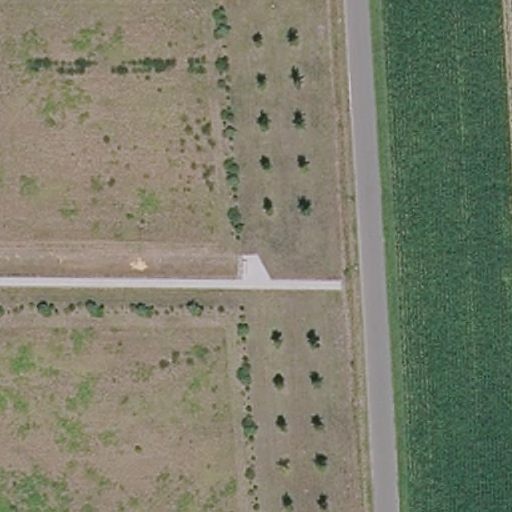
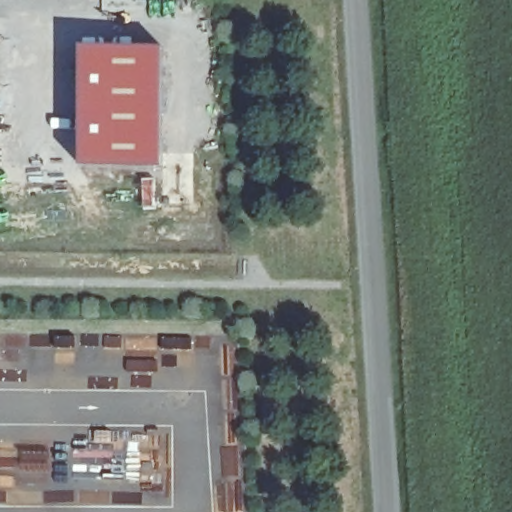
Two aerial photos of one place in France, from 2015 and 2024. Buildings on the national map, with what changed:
new [(164,50),(164,170),(83,168),(82,49),(164,50)]

